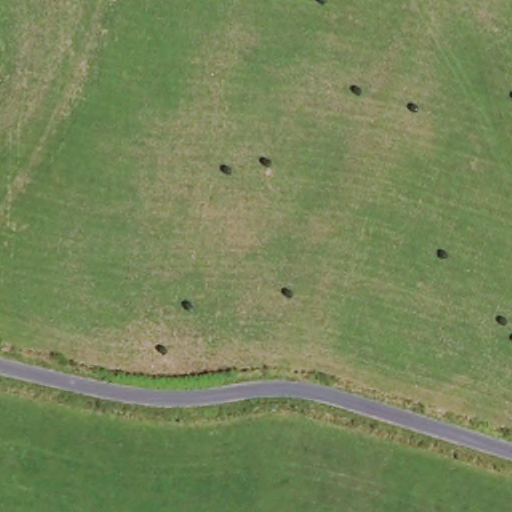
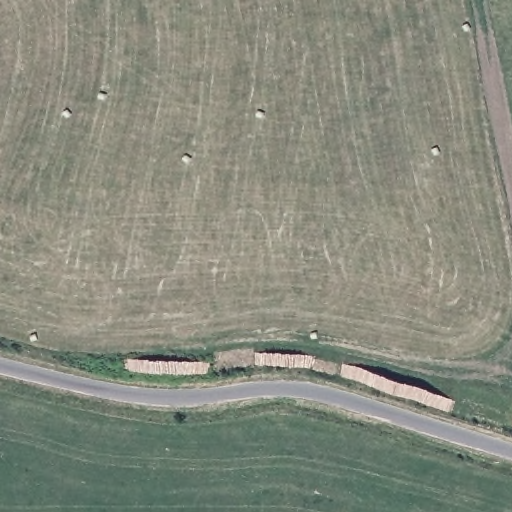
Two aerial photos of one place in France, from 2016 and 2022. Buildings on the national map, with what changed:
[]

